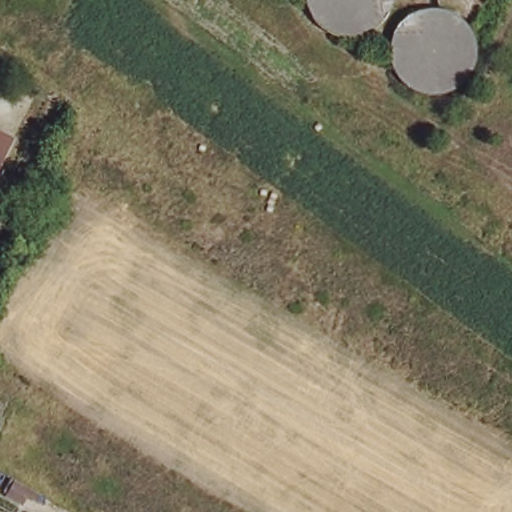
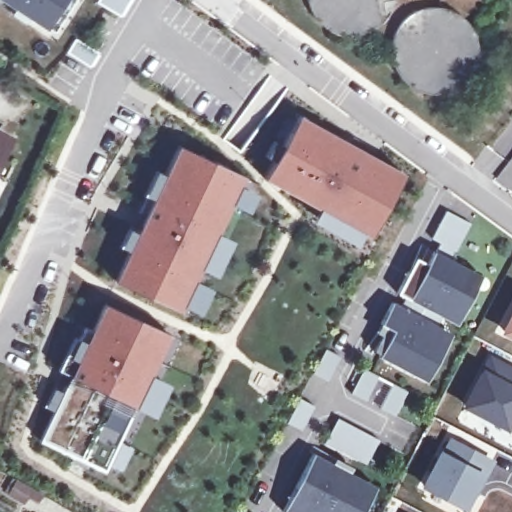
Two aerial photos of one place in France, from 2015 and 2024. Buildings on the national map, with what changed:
new [(17,9),(5,0),(65,0),(47,28),(17,9)]
new [(120,17),(97,2),(98,0),(130,0),(129,1),(120,17)]
new [(98,52),(92,63),(70,47),(75,39),(98,52)]
new [(403,175),(392,195),(294,122),(297,117),(403,175)]
new [(373,227),(275,156),(294,122),(392,195),(373,227)]
unchanged [(0,156),(0,138),(7,142),(0,156)]
new [(138,212),(145,197),(152,200),(177,145),(242,176),(237,187),(248,192),(240,207),(230,202),(190,286),(178,312),(114,281),(130,249),(145,216),(138,212)]
new [(275,156),(373,227),(368,237),(263,178),(275,156)]
new [(361,232),(357,240),(315,216),(318,209),(361,232)]
new [(446,320),(440,317),(400,287),(407,272),(420,278),(422,271),(416,267),(419,262),(420,260),(427,263),(433,251),(435,252),(440,243),(431,238),(437,227),(445,212),(470,224),(460,244),(455,252),(453,251),(448,260),(471,272),(481,277),(470,298),(456,325),(446,320)]
new [(199,267),(215,234),(225,239),(210,272),(199,267)]
new [(193,281),(203,287),(201,292),(192,310),(182,305),(190,286),(193,281)]
new [(425,383),(416,377),(378,357),(380,354),(373,351),(382,333),(389,337),(392,330),(380,324),(392,302),(401,307),(405,299),(438,317),(434,326),(441,330),(451,335),(425,383)]
new [(155,361),(149,375),(80,335),(83,328),(90,331),(103,304),(159,331),(168,335),(155,361)]
new [(503,333),(512,314),(512,339),(503,333)]
new [(119,438),(57,402),(70,376),(62,373),(80,335),(149,375),(148,376),(161,382),(147,413),(134,407),(119,438)]
new [(318,363),(325,350),(327,351),(340,357),(332,372),(327,382),(314,375),(313,374),(318,363)]
new [(488,353),(512,366),(512,414),(504,429),(462,406),(488,353)]
new [(355,386),(363,369),(377,377),(368,393),(365,401),(351,393),(355,386)]
new [(392,385),(407,392),(397,411),(394,417),(380,408),(383,402),(392,385)]
new [(287,423),(300,399),(301,400),(314,406),(302,431),(288,424),(287,423)]
new [(117,471),(107,466),(103,472),(89,465),(86,471),(70,463),(73,458),(39,442),(57,402),(119,438),(118,441),(128,446),(117,471)]
new [(378,441),(366,465),(325,443),(338,420),(378,441)]
new [(499,462),(474,512),(463,512),(424,490),(450,437),(499,462)]
new [(306,467),(312,455),(365,482),(375,487),(367,503),(363,512),(282,512),(306,467)]
unchanged [(37,501),(25,495),(22,502),(9,495),(17,481),(30,487),(41,494),(37,501)]

